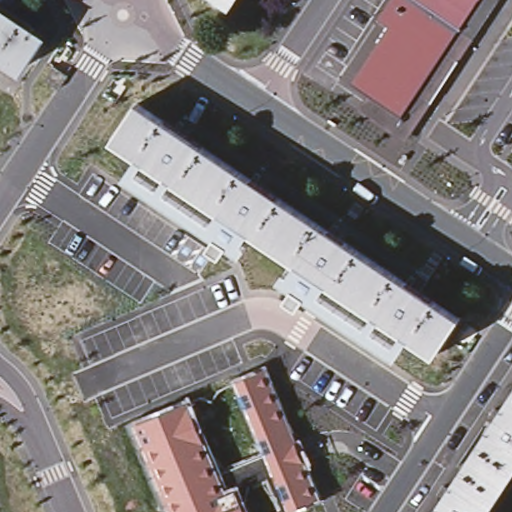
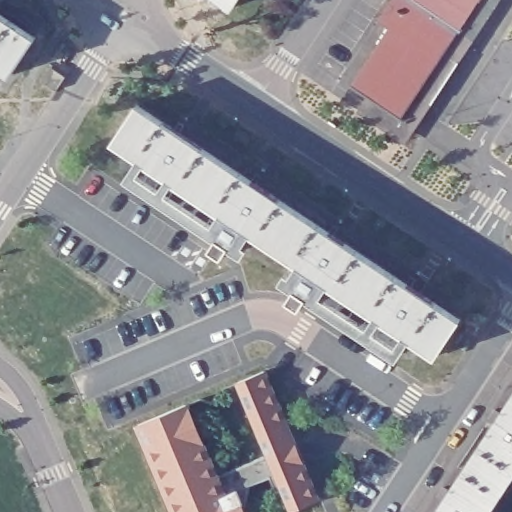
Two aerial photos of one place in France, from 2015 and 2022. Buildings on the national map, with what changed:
unchanged [(225,0),(238,0),(235,6),(225,0)]
unchanged [(400,36),(388,29),(407,0),(411,0),(420,5),(418,8),(465,39),(409,124),(411,125),(410,128),(375,103),(362,94),(400,36)]
unchanged [(420,5),(423,0),(492,0),(467,37),(420,5)]
unchanged [(5,68),(0,64),(0,11),(30,30),(5,68)]
unchanged [(60,73),(50,87),(35,77),(45,63),(60,73)]
unchanged [(137,103),(455,317),(430,354),(113,140),(137,103)]
unchanged [(265,369),(295,441),(269,452),(239,379),(265,369)]
unchanged [(185,402),(232,512),(177,512),(138,421),(185,402)]
unchanged [(490,512),(438,512),(512,402),(512,479),(490,512)]
unchanged [(303,460),(318,498),(292,509),(277,471),(303,460)]

